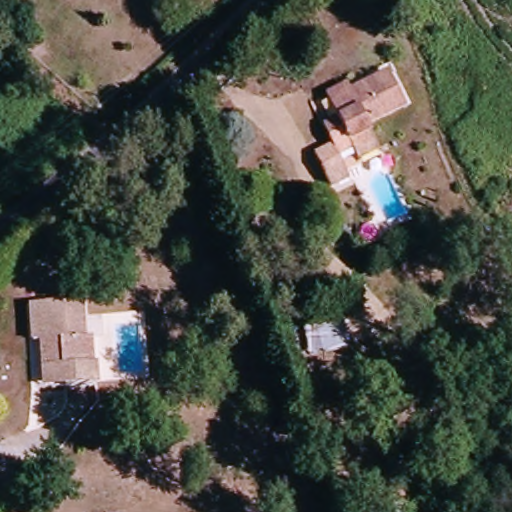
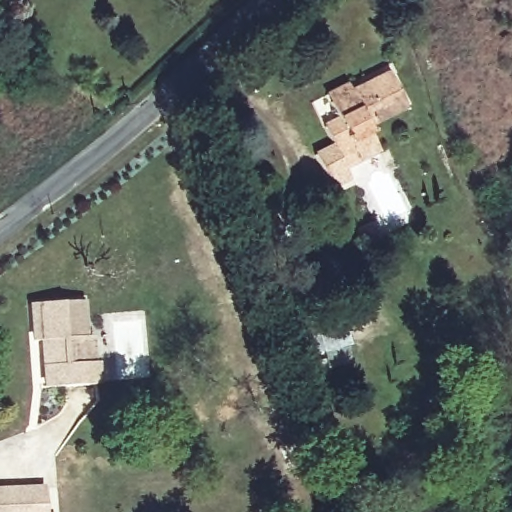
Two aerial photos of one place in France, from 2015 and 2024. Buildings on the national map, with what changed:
unchanged [(358,172),(352,157),(340,164),(348,186),(326,195),(312,159),(332,151),(324,132),(340,127),(333,111),(325,95),(344,87),(348,92),(391,73),(395,82),(408,115),(371,133),(375,141),(382,163),(358,172)]
unchanged [(38,375),(38,344),(30,342),(28,307),(83,302),(83,341),(88,340),(88,365),(98,364),(98,387),(52,390),(41,391),(38,375)]
unchanged [(351,357),(324,367),(312,321),(338,312),(351,357)]
new [(44,484),(46,506),(46,512),(0,512),(0,485),(44,484)]

